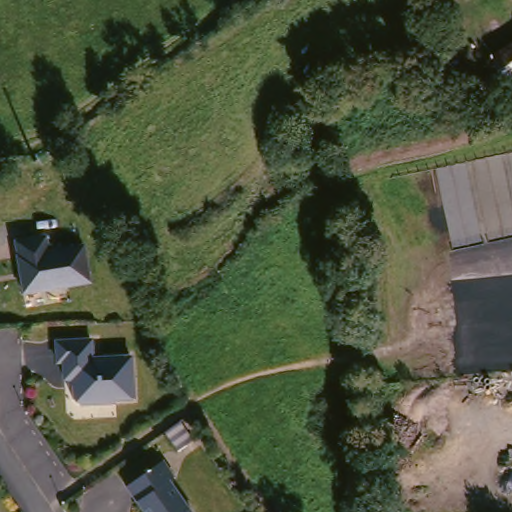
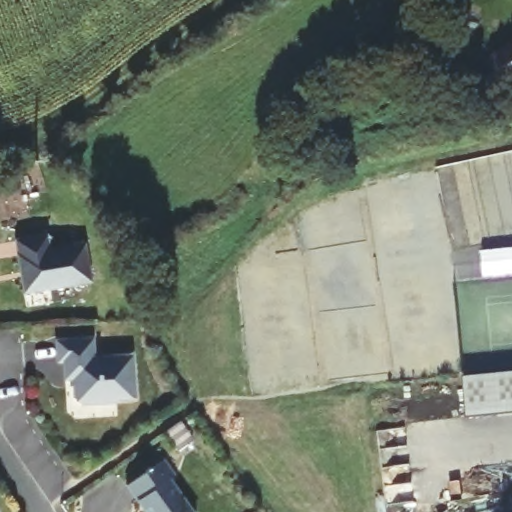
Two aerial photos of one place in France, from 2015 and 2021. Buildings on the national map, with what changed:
unchanged [(485,58),(512,41),(512,87),(505,91),(485,58)]
unchanged [(47,237),(50,252),(84,245),(91,282),(25,296),(15,243),(47,237)]
unchanged [(95,353),(133,350),(137,391),(119,392),(120,395),(82,398),(77,394),(75,373),(67,375),(66,357),(61,357),(59,337),(94,334),(95,353)]
new [(512,371),(512,411),(467,415),(464,375),(512,371)]
unchanged [(177,426),(179,424),(192,442),(178,453),(165,435),(177,426)]
unchanged [(175,473),(170,477),(195,512),(148,512),(127,483),(164,457),(175,473)]

